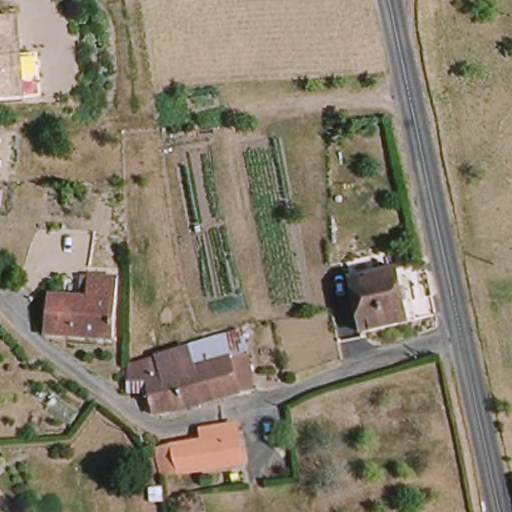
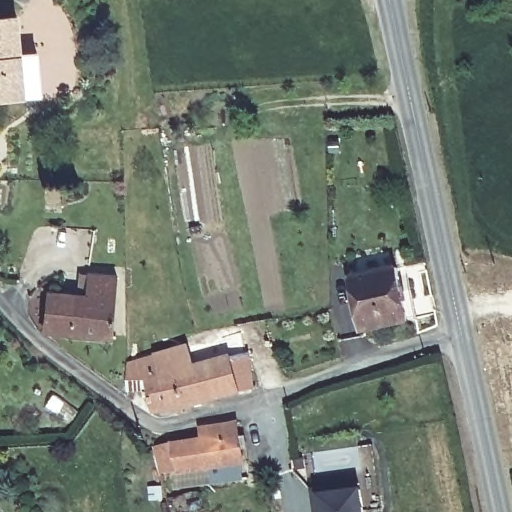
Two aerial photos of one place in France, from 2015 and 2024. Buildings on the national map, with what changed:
unchanged [(34,99),(16,100),(0,101),(0,21),(9,20),(12,57),(30,56),(34,99)]
unchanged [(39,135),(36,164),(17,161),(19,130),(39,135)]
unchanged [(405,267),(414,323),(363,334),(351,277),(405,267)]
unchanged [(46,290),(64,292),(86,295),(90,271),(120,275),(112,342),(42,334),(45,298),(46,290)]
unchanged [(258,393),(235,398),(180,412),(162,351),(214,336),(247,338),(250,360),(257,385),(258,393)]
unchanged [(162,351),(180,412),(159,419),(149,390),(129,393),(129,360),(162,351)]
unchanged [(201,438),(199,428),(238,421),(243,464),(165,477),(159,447),(201,438)]
new [(359,487),(363,512),(314,512),(311,488),(316,487),(338,484),(358,481),(359,487)]

